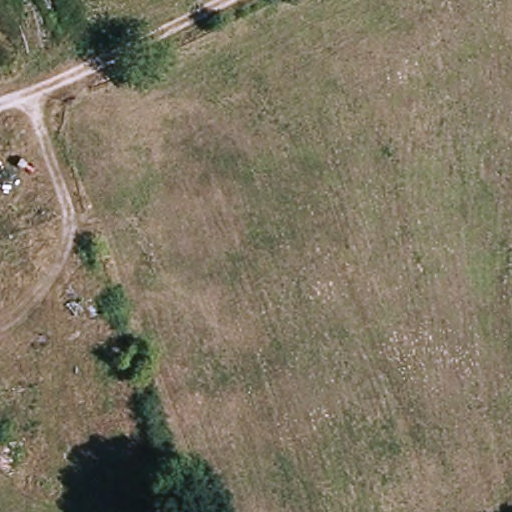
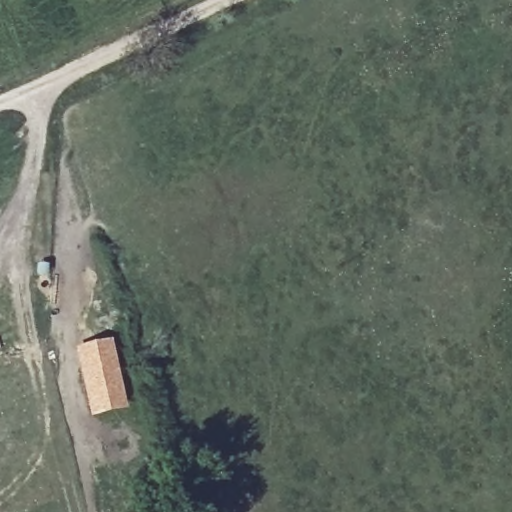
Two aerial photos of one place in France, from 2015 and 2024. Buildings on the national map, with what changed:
new [(113,337),(129,409),(90,417),(74,347),(113,337)]

